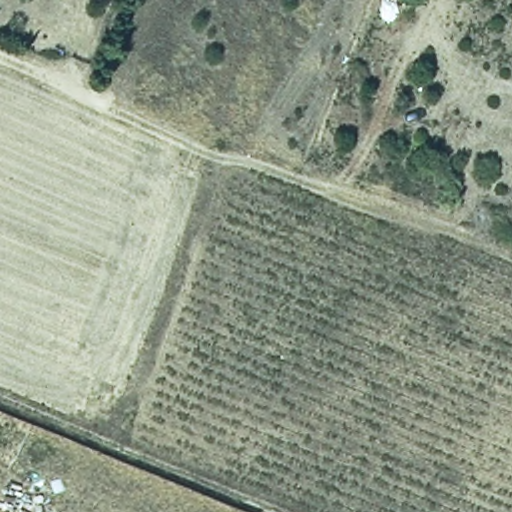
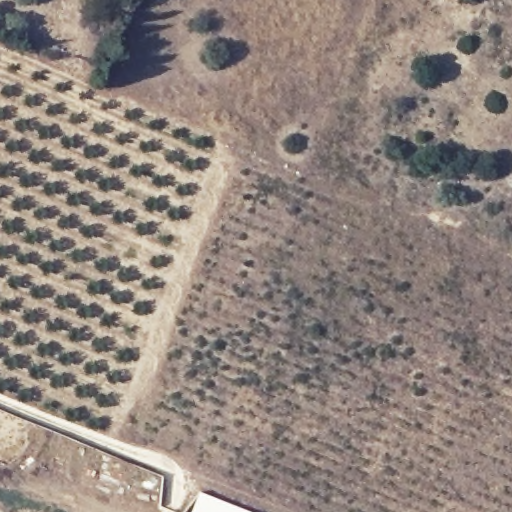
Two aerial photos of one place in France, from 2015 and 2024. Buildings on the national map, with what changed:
new [(191,512),(197,493),(245,512),(191,512)]

